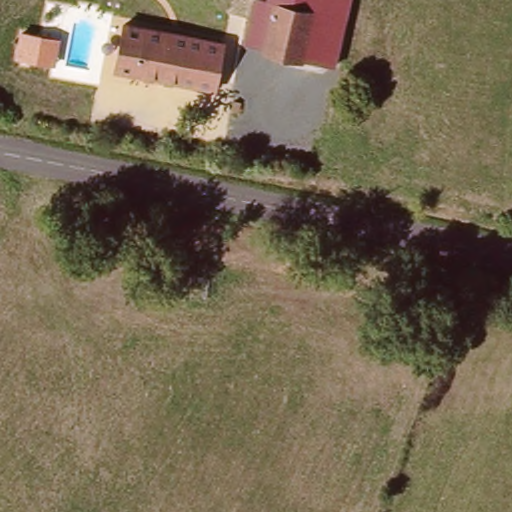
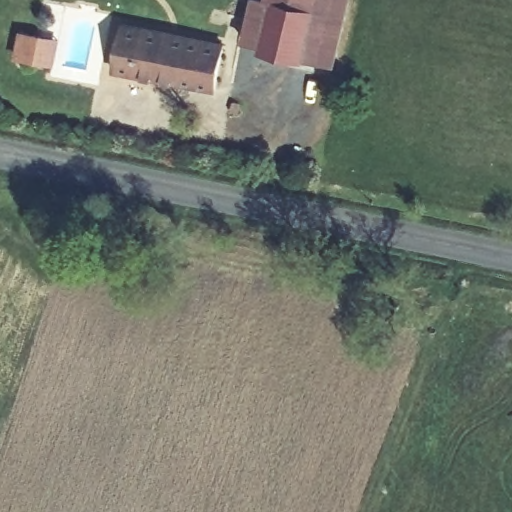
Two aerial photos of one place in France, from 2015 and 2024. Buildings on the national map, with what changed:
unchanged [(253,3),(296,14),(286,62),(285,63),(246,55),(247,51),(228,46),(232,31),(238,0),(239,0),(242,1),(253,3)]
unchanged [(317,69),(310,68),(286,62),(296,14),(253,3),(254,0),(334,0),(317,69)]
unchanged [(116,72),(126,27),(225,47),(216,93),(116,72)]
unchanged [(55,65),(15,57),(20,30),(61,38),(55,65)]

